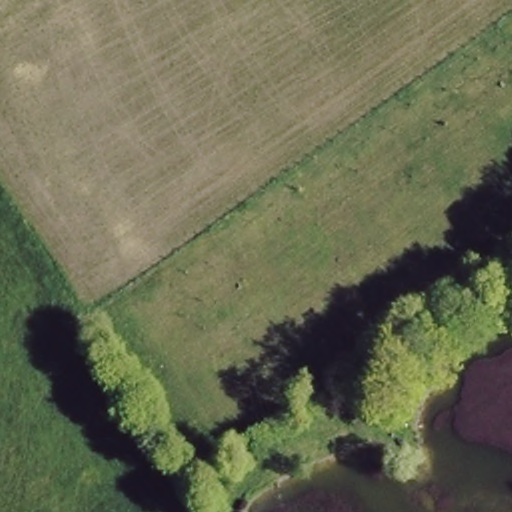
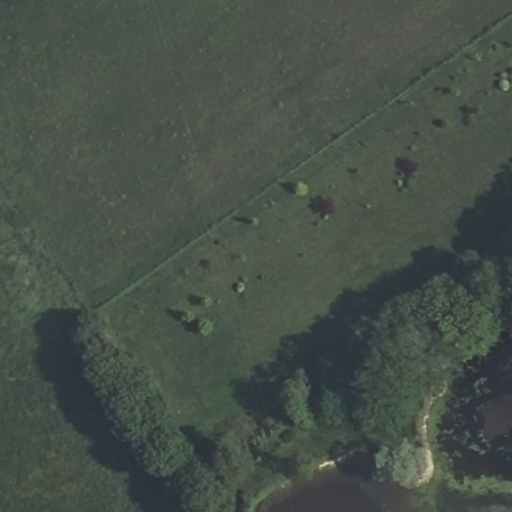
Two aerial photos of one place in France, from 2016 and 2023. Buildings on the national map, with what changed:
[]

